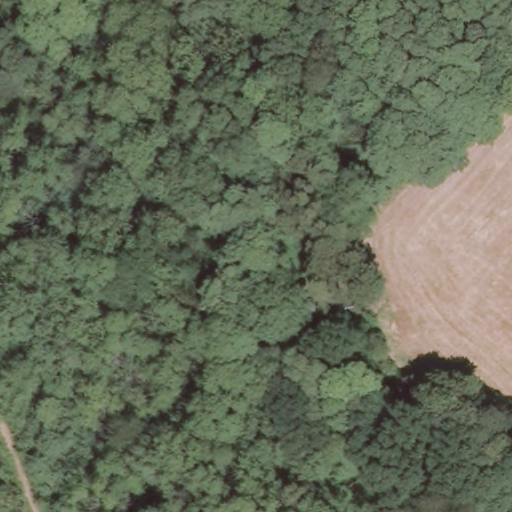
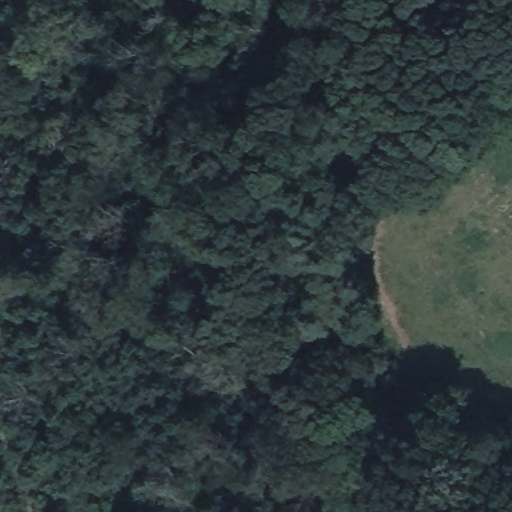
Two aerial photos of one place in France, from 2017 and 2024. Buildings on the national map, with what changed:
unchanged [(324,306),(335,293),(357,311),(345,323),(324,306)]

